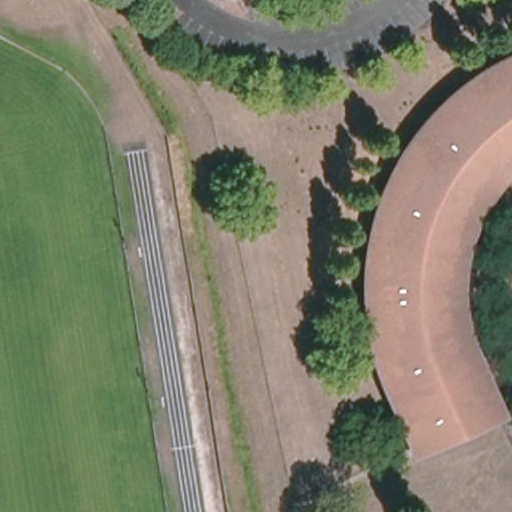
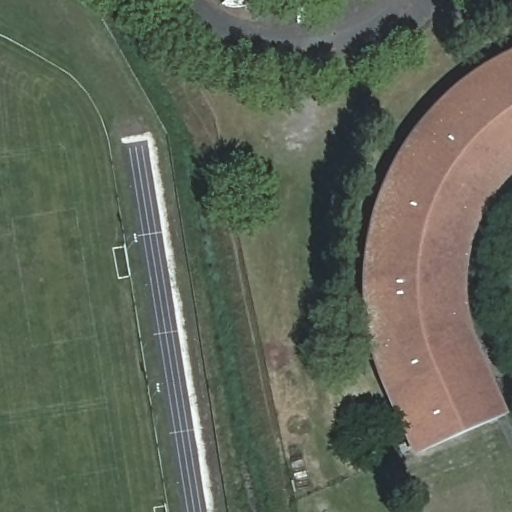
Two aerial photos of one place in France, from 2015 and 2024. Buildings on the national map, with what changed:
unchanged [(460,251),(459,258),(457,274),(456,288),(456,302),(459,320),(464,340),(473,359),(483,385),(496,414),(413,450),(394,409),(384,388),(378,371),(373,353),(369,336),(367,320),(364,302),(364,287),(364,271),(367,254),(370,236),(373,221),(378,206),(384,189),(391,175),(399,161),(408,147),(421,129),(432,116),(443,105),(457,93),(471,81),(484,73),(496,66),(511,59),(512,58),(512,165),(509,168),(496,181),(486,193),(474,212),(468,226),(467,228),(463,242),(460,251)]
unchanged [(409,451),(401,454),(398,446),(405,443),(409,451)]

